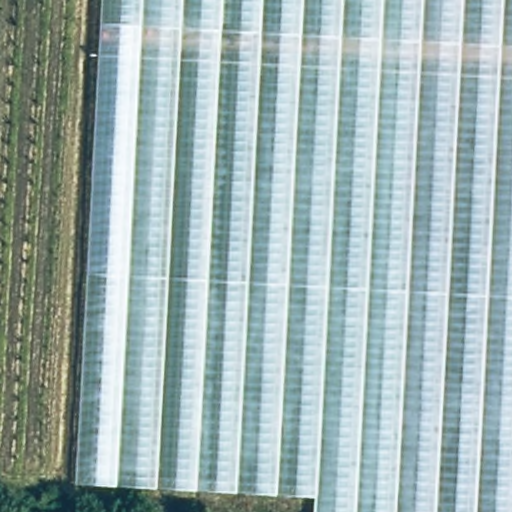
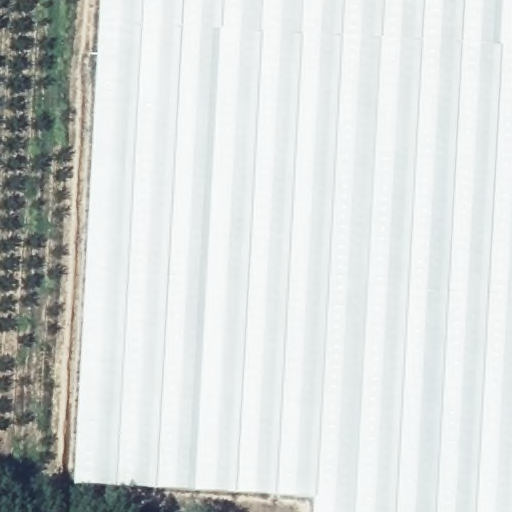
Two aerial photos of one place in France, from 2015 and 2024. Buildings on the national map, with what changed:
unchanged [(314,512),(315,501),(77,483),(101,0),(512,0),(512,512),(314,512)]

